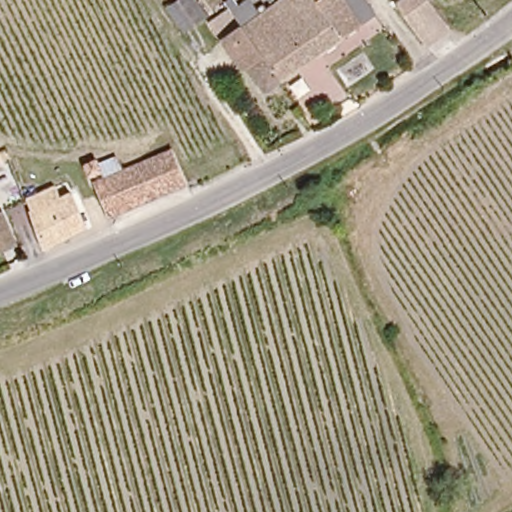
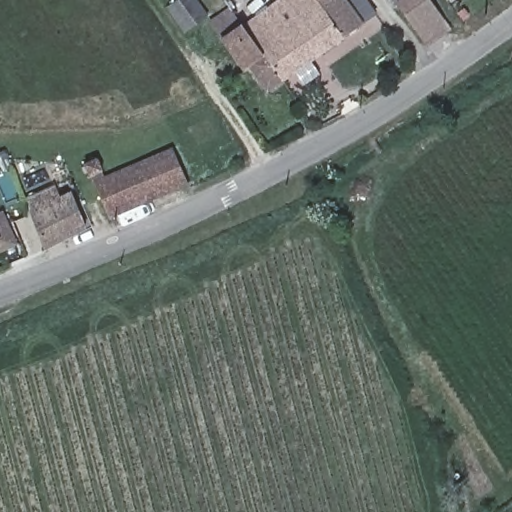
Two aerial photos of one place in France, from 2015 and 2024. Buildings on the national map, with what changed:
unchanged [(182,21),(169,3),(174,0),(199,0),(203,5),(207,13),(186,26),(182,21)]
unchanged [(280,0),(359,0),(372,19),(277,83),(225,10),(231,8),(243,24),(280,0)]
unchanged [(390,4),(395,0),(423,0),(446,28),(424,46),(390,4)]
unchanged [(277,83),(269,88),(250,60),(242,65),(211,19),(225,10),(277,83)]
unchanged [(99,187),(124,174),(160,155),(164,154),(178,182),(139,203),(115,216),(99,187)]
unchanged [(86,228),(46,249),(31,218),(70,198),(86,228)]
unchanged [(15,249),(0,254),(0,218),(3,217),(15,249)]

